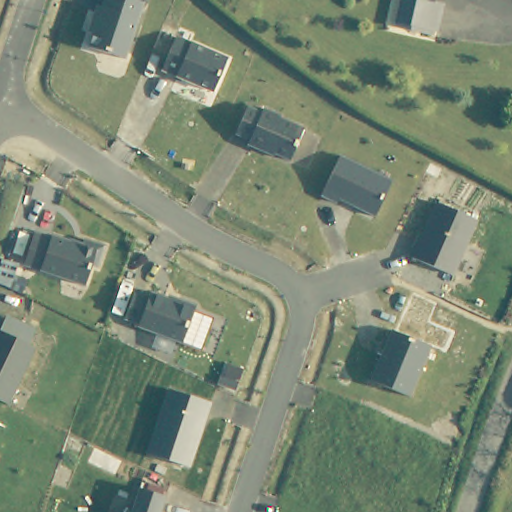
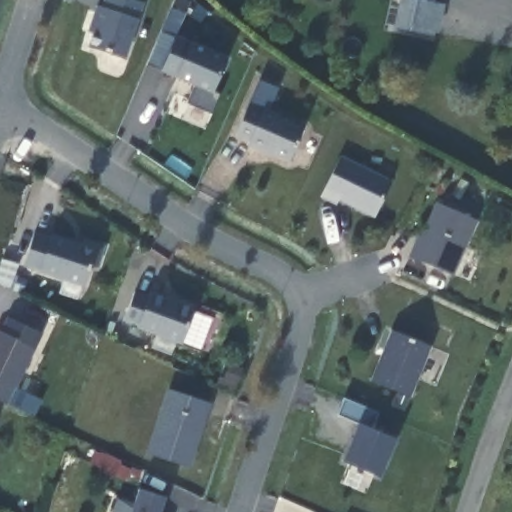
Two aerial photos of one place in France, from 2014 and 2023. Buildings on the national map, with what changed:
unchanged [(83,39),(91,16),(87,15),(93,0),(140,0),(118,53),(83,39)]
unchanged [(431,28),(415,25),(414,31),(395,27),(400,0),(437,0),(431,28)]
unchanged [(190,41),(228,57),(213,92),(175,76),(163,69),(175,36),(190,41)]
unchanged [(239,111),(252,117),(254,113),(271,120),(269,122),(294,134),(279,166),(254,154),(253,156),(237,149),(239,144),(226,138),(239,111)]
unchanged [(334,148),(386,173),(369,209),(332,191),(330,196),(315,188),(334,148)]
unchanged [(409,231),(413,233),(431,193),(470,210),(469,212),(445,265),(402,246),(409,231)]
unchanged [(27,239),(29,232),(46,237),(47,235),(77,244),(78,238),(100,245),(93,266),(87,264),(85,271),(81,285),(19,265),(27,239)]
unchanged [(149,291),(165,297),(166,293),(197,304),(195,313),(211,318),(201,349),(182,343),(135,326),(136,322),(124,318),(136,286),(149,291)]
unchanged [(430,346),(410,397),(371,381),(392,330),(430,346)]
unchanged [(6,403),(0,401),(0,331),(33,347),(6,403)]
unchanged [(162,398),(166,386),(206,399),(201,416),(199,415),(197,414),(195,420),(198,425),(185,464),(145,451),(162,398)]
new [(377,412),(371,428),(396,439),(379,477),(342,461),(359,423),(338,414),(345,398),(377,412)]
unchanged [(160,512),(132,512),(139,487),(165,497),(160,512)]

